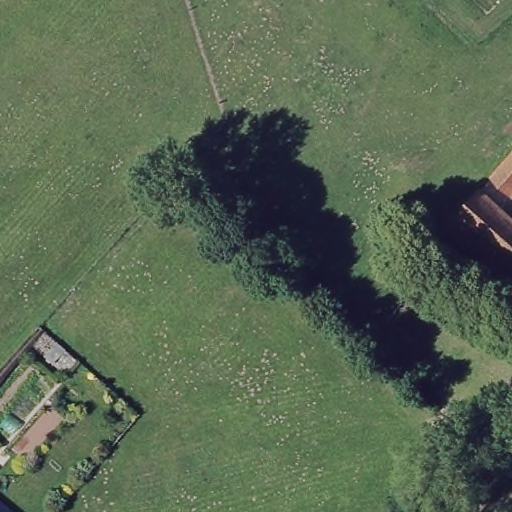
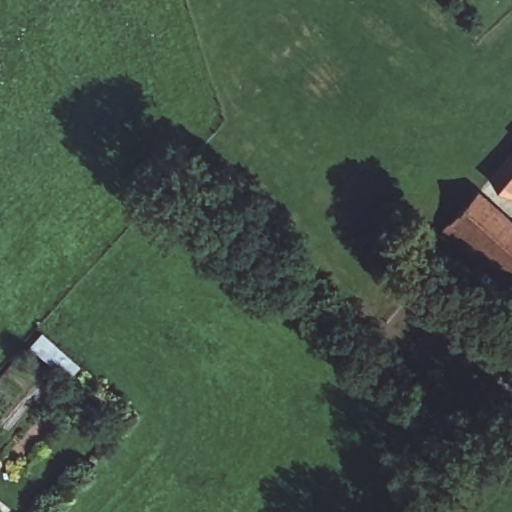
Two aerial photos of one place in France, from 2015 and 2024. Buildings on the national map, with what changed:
unchanged [(487,174),(512,144),(512,195),(487,174)]
unchanged [(512,214),(512,289),(441,228),(482,186),(512,214)]

